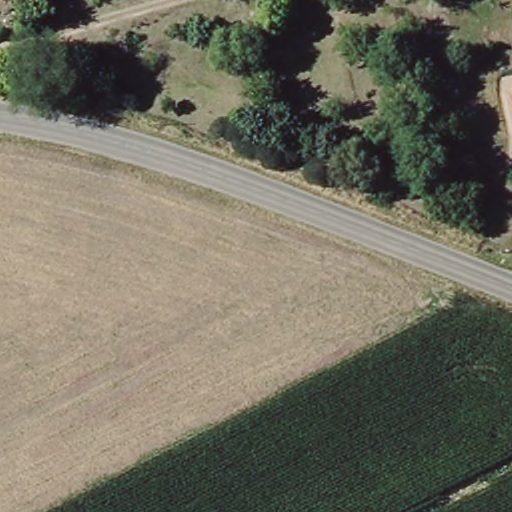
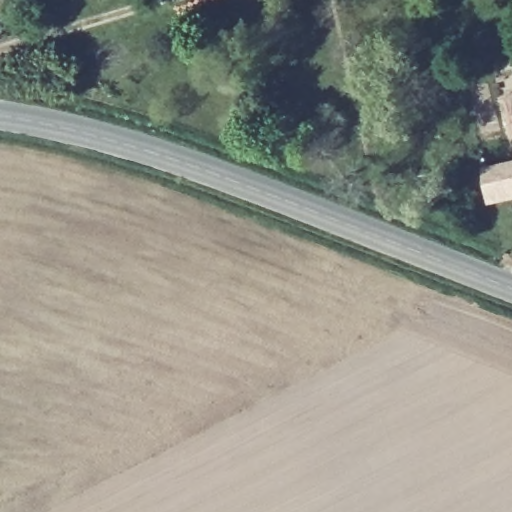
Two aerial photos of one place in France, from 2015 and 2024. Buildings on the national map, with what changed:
unchanged [(512,96),(512,114),(509,97),(512,96)]
new [(512,197),(488,202),(480,165),(512,158),(512,197)]

